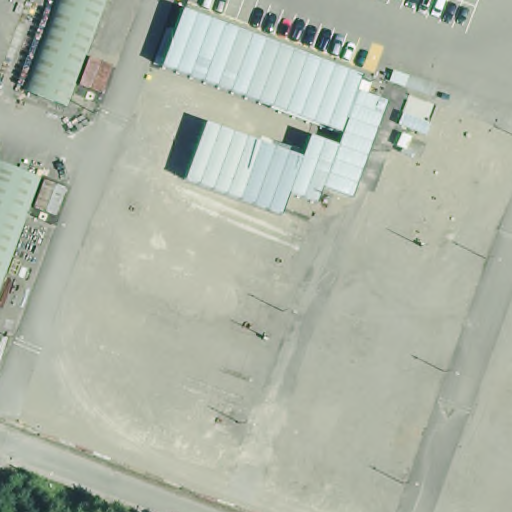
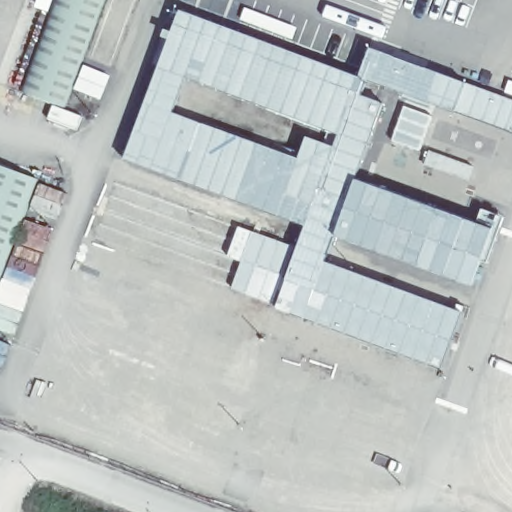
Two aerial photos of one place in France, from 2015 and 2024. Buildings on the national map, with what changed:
unchanged [(55,0),(111,0),(70,109),(22,90),(55,0)]
unchanged [(350,199),(317,188),(313,203),(286,194),(279,215),(181,180),(202,122),(300,157),(307,135),(335,145),(338,133),(158,66),(180,10),(358,76),(353,91),(383,101),(350,199)]
new [(512,102),(512,133),(358,76),(369,47),(512,102)]
new [(181,180),(122,158),(158,66),(182,75),(170,110),(202,122),(181,180)]
unchanged [(0,284),(0,159),(41,171),(0,284)]
new [(490,228),(472,287),(331,235),(322,260),(458,311),(438,369),(230,287),(240,262),(225,255),(235,226),(295,249),(303,224),(279,215),(286,194),(313,203),(317,188),(350,199),(355,181),(490,228)]

